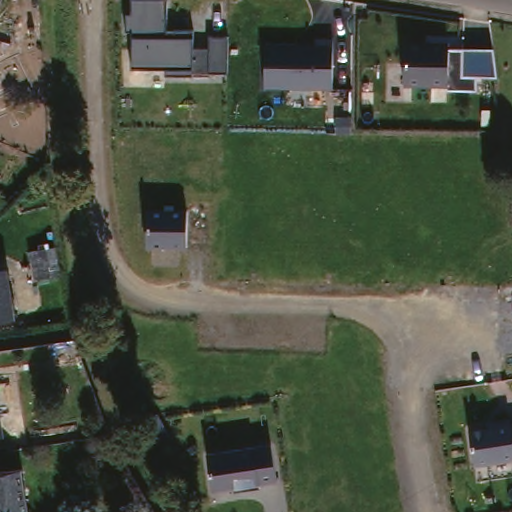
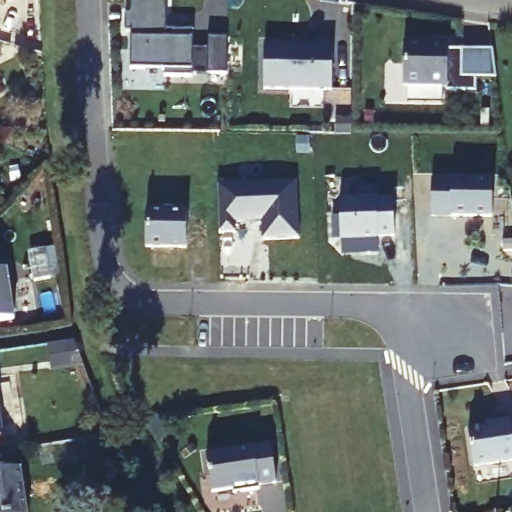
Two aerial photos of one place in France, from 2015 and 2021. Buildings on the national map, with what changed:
unchanged [(0,0),(2,0),(0,6),(0,0)]
unchanged [(211,74),(211,77),(193,75),(193,79),(166,77),(166,70),(134,69),(133,32),(128,30),(128,14),(133,13),(132,1),(165,1),(166,32),(192,32),(192,49),(209,49),(209,37),(228,37),(227,73),(211,74)]
unchanged [(266,39),(309,42),(312,37),(334,38),(330,90),(264,86),(266,39)]
unchanged [(406,37),(448,40),(448,47),(489,48),(496,75),(475,74),(476,94),(445,87),(403,81),(406,37)]
new [(432,181),(452,181),(493,182),(493,217),(454,217),(433,217),(432,181)]
new [(219,186),(297,182),(299,238),(264,240),(263,221),(237,222),(237,232),(221,233),(219,186)]
new [(341,242),(332,242),(331,224),(340,223),(339,200),(356,199),(355,191),(376,190),(376,198),(394,198),(395,237),(378,238),(378,255),(342,257),(341,242)]
unchanged [(150,211),(189,212),(188,248),(148,248),(150,211)]
unchanged [(54,253),(58,284),(40,286),(36,255),(54,253)]
unchanged [(16,313),(0,315),(0,264),(8,263),(16,313)]
unchanged [(468,421),(512,418),(512,458),(478,463),(468,421)]
unchanged [(0,441),(0,428),(2,441),(0,441)]
unchanged [(273,445),(276,479),(263,480),(263,486),(210,491),(205,453),(273,445)]
unchanged [(25,512),(0,512),(0,471),(17,468),(25,512)]

